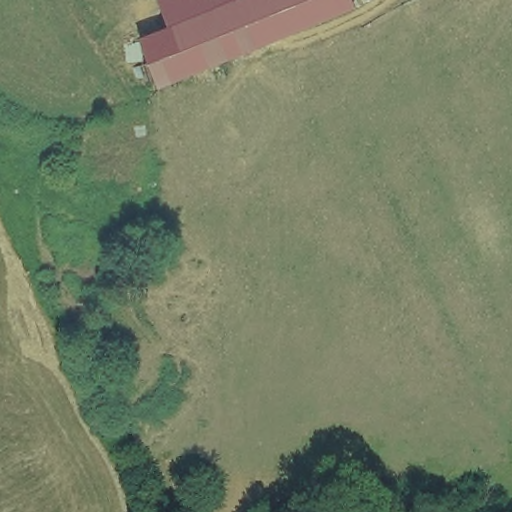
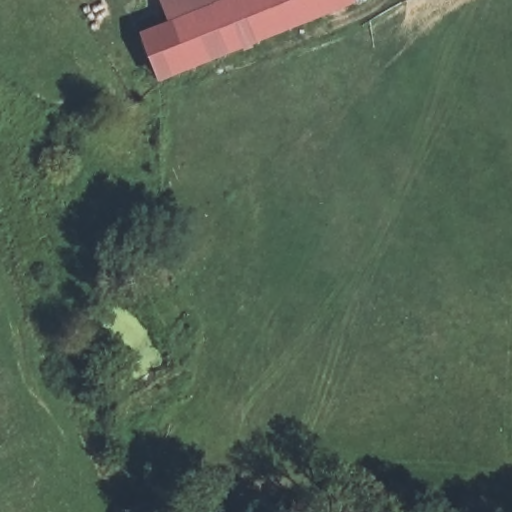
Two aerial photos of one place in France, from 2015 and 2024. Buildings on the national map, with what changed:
unchanged [(139,34),(171,20),(181,16),(222,0),(351,0),(353,4),(353,5),(348,6),(325,16),(286,31),(208,63),(163,81),(159,82),(148,55),(139,34)]
unchanged [(222,0),(181,16),(171,20),(163,0),(222,0)]

